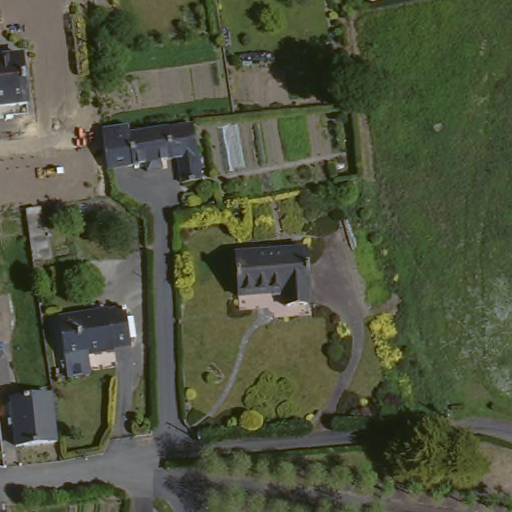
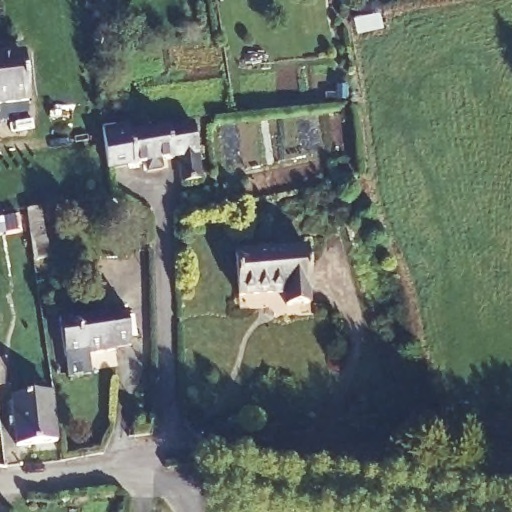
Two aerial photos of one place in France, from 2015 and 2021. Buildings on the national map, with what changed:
unchanged [(28,99),(0,101),(0,54),(23,52),(28,99)]
unchanged [(131,130),(193,121),(201,177),(181,180),(178,157),(160,159),(161,168),(146,170),(146,161),(109,167),(103,125),(129,122),(131,130)]
unchanged [(41,209),(49,260),(34,263),(26,211),(41,209)]
unchanged [(284,308),(283,296),(240,298),(236,254),(308,250),(311,291),(309,294),(310,307),(284,308)]
unchanged [(131,346),(114,349),(113,349),(113,351),(88,354),(90,375),(68,378),(59,319),(126,309),(131,346)]
unchanged [(0,361),(6,361),(11,386),(0,387),(0,361)]
unchanged [(51,396),(58,444),(18,447),(13,401),(51,396)]

